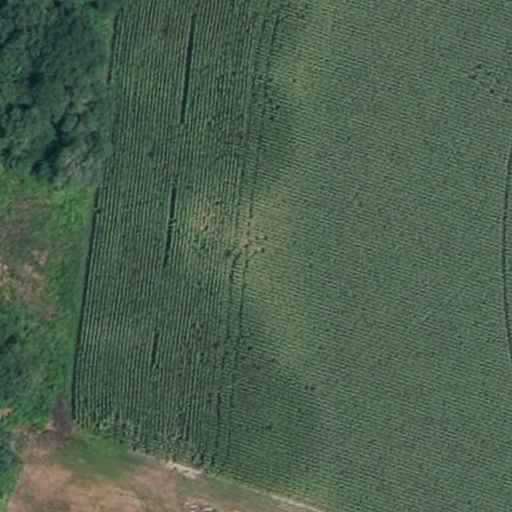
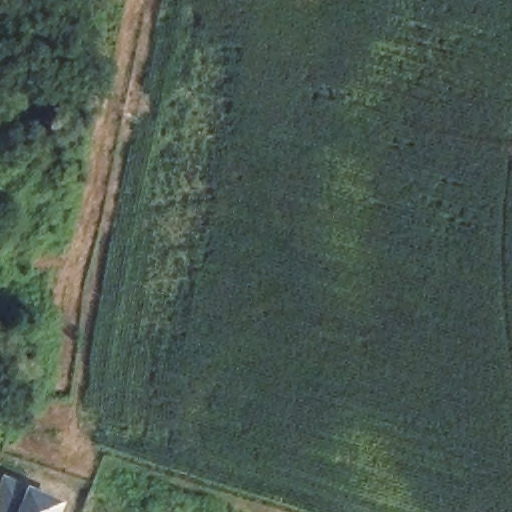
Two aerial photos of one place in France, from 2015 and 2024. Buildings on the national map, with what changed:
new [(26,484),(14,512),(0,512),(0,475),(1,473),(26,484)]
new [(64,501),(58,512),(14,512),(26,484),(64,501)]

